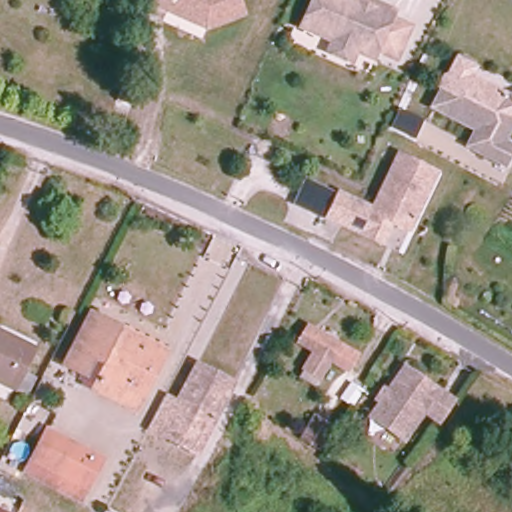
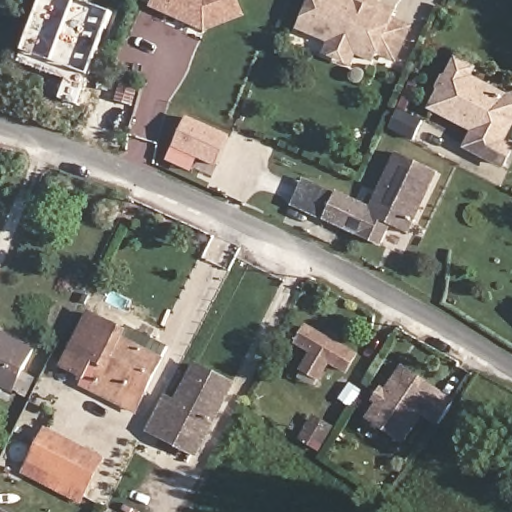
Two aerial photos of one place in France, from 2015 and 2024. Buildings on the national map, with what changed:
new [(19,62),(41,0),(79,0),(112,12),(79,106),(59,98),(66,79),(19,62)]
unchanged [(150,6),(153,0),(240,0),(246,16),(206,31),(150,6)]
unchanged [(324,43),(294,29),(307,0),(348,0),(351,1),(352,0),(360,0),(374,6),(390,14),(366,63),(350,55),(344,66),(319,54),(324,43)]
unchanged [(504,94),(512,91),(512,121),(502,141),(510,146),(501,168),(459,148),(467,130),(425,109),(440,73),(444,73),(452,56),(473,66),(469,75),(504,94)]
new [(186,118),(230,137),(218,165),(174,146),(186,118)]
unchanged [(387,224),(386,224),(376,243),(320,216),(332,191),(368,209),(397,151),(437,170),(410,222),(405,232),(387,224)]
unchanged [(107,378),(110,369),(93,360),(85,377),(66,367),(93,313),(130,332),(166,352),(162,359),(142,396),(107,378)]
unchanged [(348,368),(330,359),(321,379),(300,369),(309,351),(296,343),(304,326),(356,351),(348,368)]
unchanged [(37,355),(17,396),(0,387),(0,334),(37,355)]
unchanged [(158,437),(146,430),(164,393),(178,398),(196,362),(232,382),(218,410),(213,421),(201,445),(195,457),(158,437)]
unchanged [(434,426),(419,415),(396,442),(363,417),(402,367),(452,402),(434,426)]
unchanged [(46,438),(95,464),(83,493),(30,466),(46,438)]

